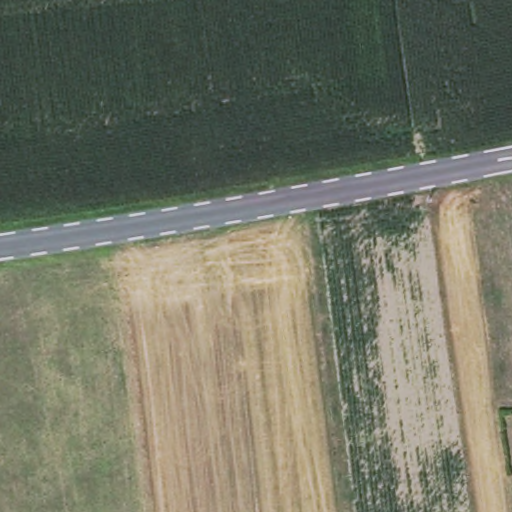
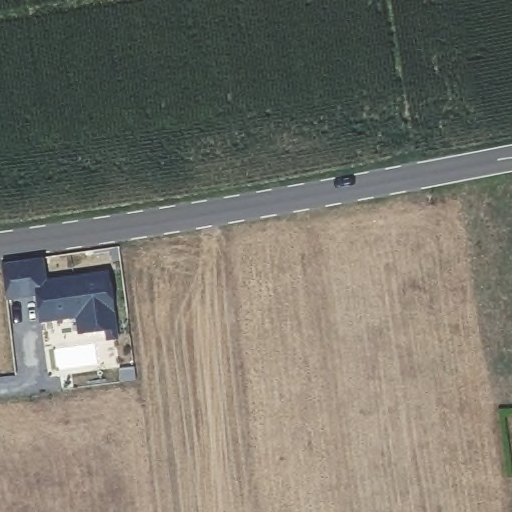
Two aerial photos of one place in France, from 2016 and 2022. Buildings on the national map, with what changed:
new [(108,338),(107,328),(80,332),(77,315),(41,320),(37,293),(6,298),(1,263),(40,257),(44,282),(106,273),(115,327),(116,337),(108,338)]

